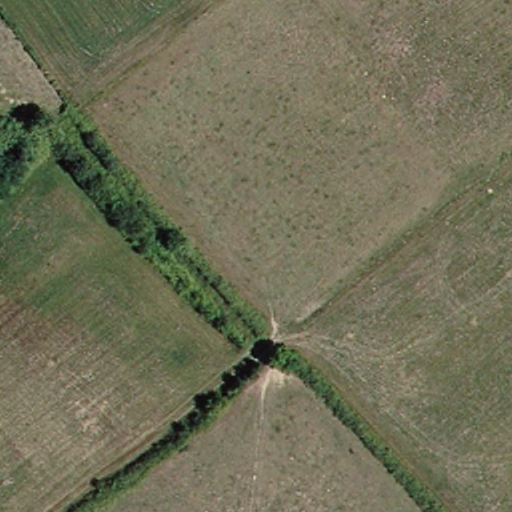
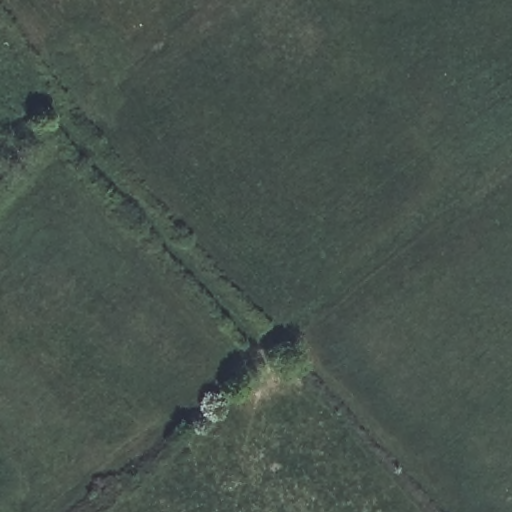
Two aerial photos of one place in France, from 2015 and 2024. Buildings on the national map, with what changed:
[]

